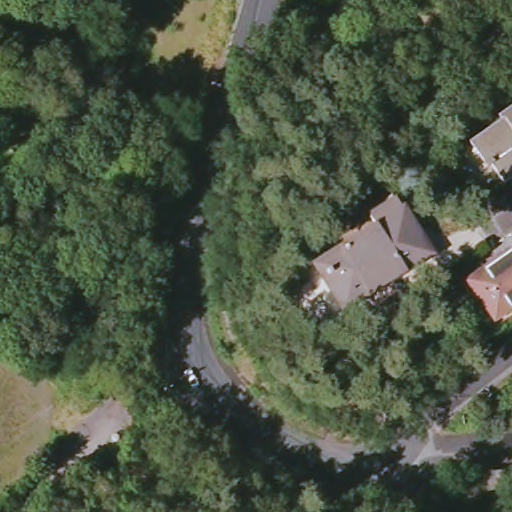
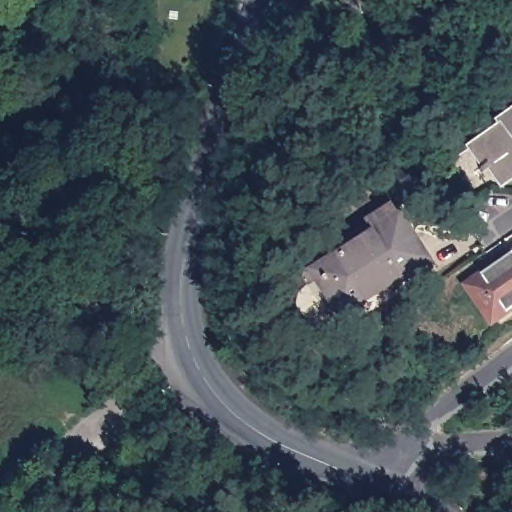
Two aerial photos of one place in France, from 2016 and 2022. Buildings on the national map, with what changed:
unchanged [(6,118),(8,105),(23,108),(21,121),(6,118)]
unchanged [(473,146),(512,118),(512,177),(500,185),(473,146)]
unchanged [(342,315),(315,272),(375,233),(368,222),(395,205),(411,230),(385,247),(403,276),(342,315)]
unchanged [(430,259),(403,276),(385,247),(411,230),(430,259)]
unchanged [(470,285),(512,257),(512,311),(495,322),(470,285)]
unchanged [(482,474),(503,473),(503,488),(484,489),(482,474)]

